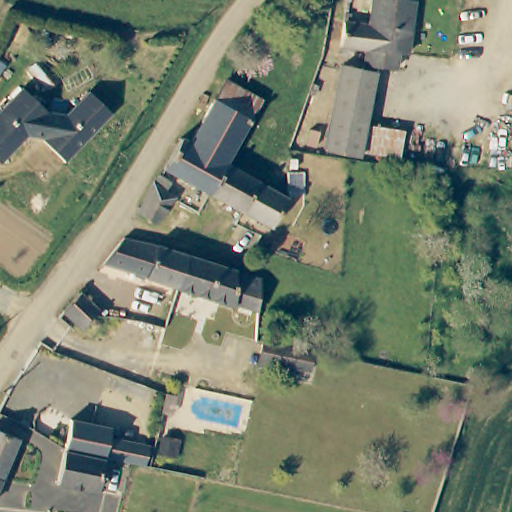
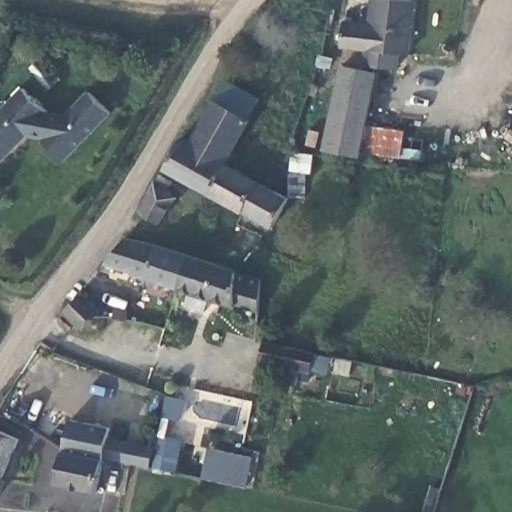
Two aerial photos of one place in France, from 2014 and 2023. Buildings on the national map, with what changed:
unchanged [(399,55),(397,73),(367,70),(369,49),(347,47),(349,23),(376,25),(378,0),(417,4),(412,55),(399,55)]
unchanged [(358,158),(326,150),(346,71),(380,80),(366,131),(358,158)]
unchanged [(192,144),(217,99),(220,100),(230,85),(260,101),(252,117),(226,163),(192,144)]
unchanged [(17,102),(33,120),(52,115),(61,113),(97,90),(125,116),(66,161),(48,141),(40,140),(31,137),(0,157),(0,117),(17,102)]
unchanged [(366,131),(406,141),(397,169),(396,172),(355,166),(358,158),(366,131)]
unchanged [(169,175),(188,141),(192,144),(226,163),(212,200),(169,175)]
unchanged [(212,200),(226,163),(259,182),(242,215),(212,200)]
unchanged [(259,182),(295,203),(277,235),(242,215),(259,182)]
unchanged [(159,186),(181,200),(164,227),(142,211),(159,186)]
unchanged [(101,278),(135,247),(174,255),(162,291),(101,278)]
unchanged [(174,255),(201,261),(189,297),(162,291),(174,255)]
unchanged [(246,310),(224,305),(189,297),(201,261),(227,268),(250,275),(246,310)]
unchanged [(70,316),(85,298),(107,318),(91,335),(70,316)]
unchanged [(254,365),(258,346),(273,349),(310,355),(306,376),(254,365)]
unchanged [(50,449),(55,420),(95,428),(93,438),(112,442),(150,450),(147,470),(109,461),(102,495),(63,489),(70,453),(50,449)]
unchanged [(19,442),(1,487),(0,491),(0,439),(19,442)]
new [(210,447),(252,455),(245,485),(204,477),(210,447)]

